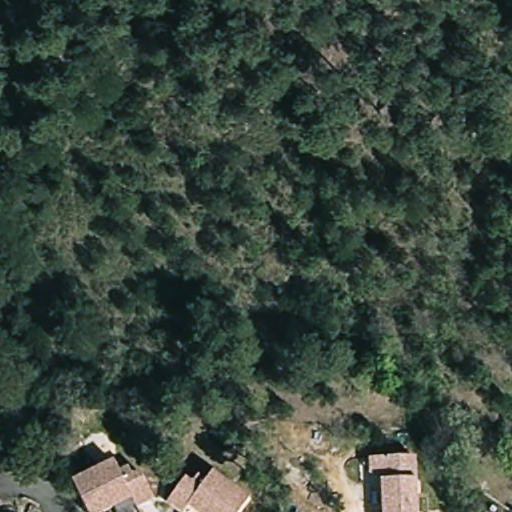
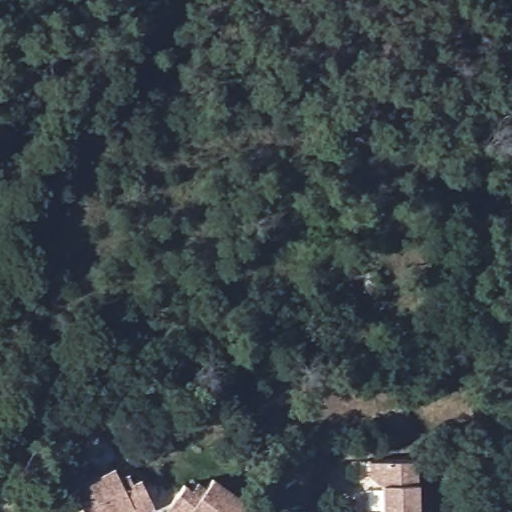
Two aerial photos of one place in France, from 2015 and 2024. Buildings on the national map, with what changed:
unchanged [(419,459),(421,512),(387,512),(386,486),(374,476),(374,461),(419,459)]
unchanged [(116,470),(121,481),(130,477),(135,486),(142,482),(156,509),(150,512),(135,512),(134,509),(128,512),(85,512),(75,491),(116,470)]
unchanged [(187,486),(194,491),(200,483),(208,489),(215,479),(253,507),(249,512),(171,512),(169,511),(187,486)]

